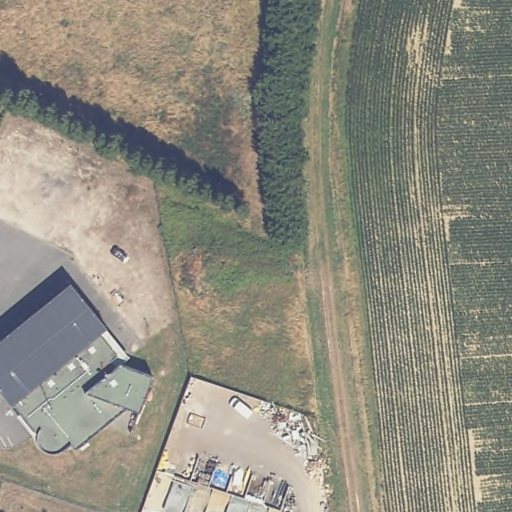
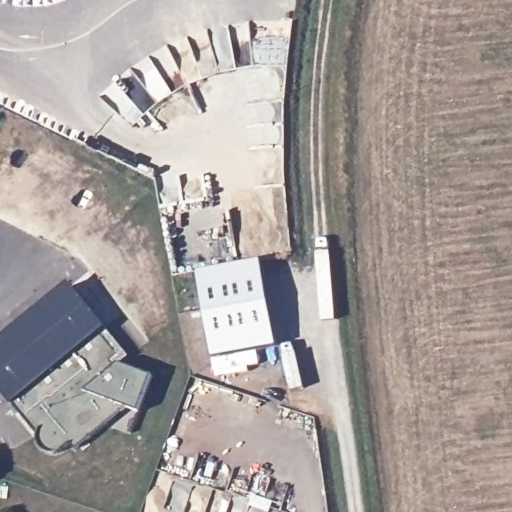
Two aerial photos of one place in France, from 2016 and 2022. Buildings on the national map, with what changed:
new [(262,258),(280,345),(213,356),(198,269),(262,258)]
unchanged [(104,332),(127,361),(116,370),(150,383),(135,420),(122,415),(69,456),(64,451),(56,458),(55,459),(55,460),(53,460),(50,461),(49,461),(48,461),(47,462),(45,462),(44,462),(43,461),(42,461),(41,461),(39,460),(38,460),(37,460),(36,458),(35,457),(34,457),(33,455),(32,453),(31,452),(30,450),(30,448),(30,446),(30,445),(30,444),(30,443),(30,442),(30,441),(31,440),(31,438),(32,436),(33,435),(34,435),(27,426),(22,430),(7,410),(7,411),(0,402),(0,346),(71,289),(104,332)]

